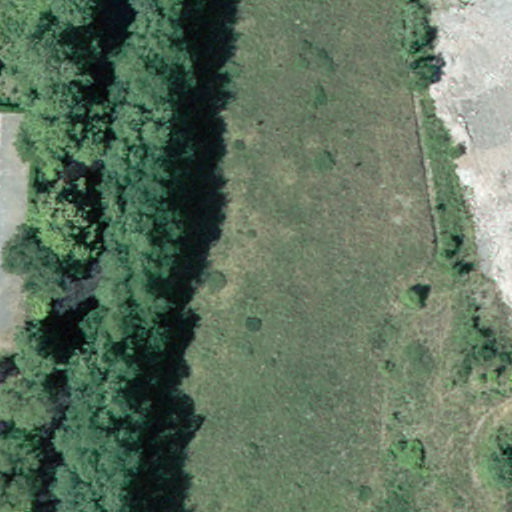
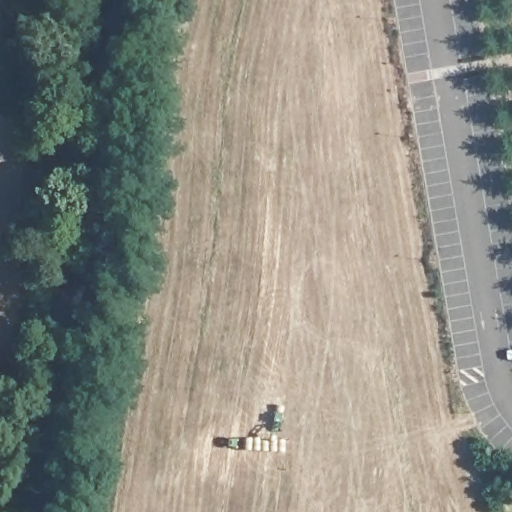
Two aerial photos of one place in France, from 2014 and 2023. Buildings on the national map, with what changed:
[]

